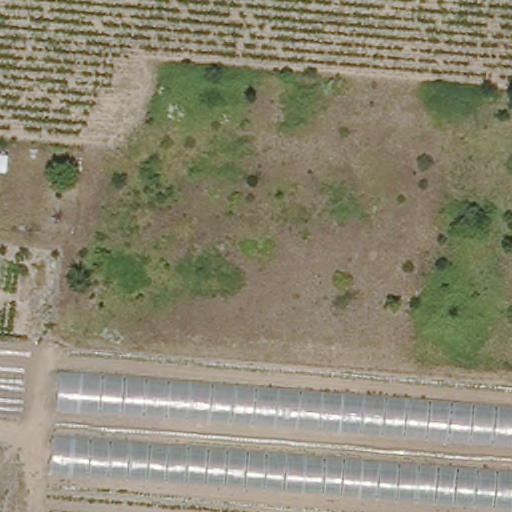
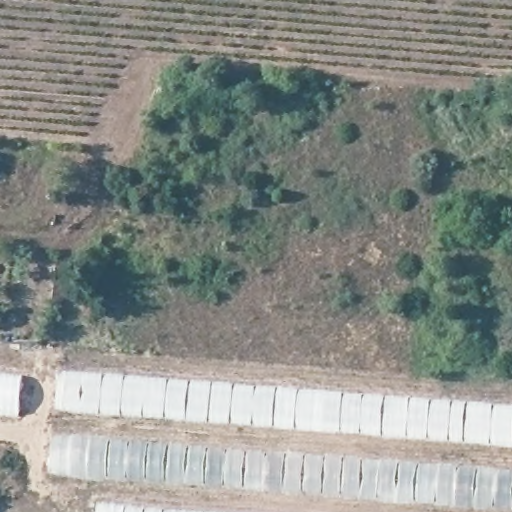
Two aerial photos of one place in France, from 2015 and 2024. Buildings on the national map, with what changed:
unchanged [(60,370),(512,404),(512,447),(57,414),(60,370)]
new [(19,417),(0,415),(0,376),(22,378),(19,417)]
unchanged [(512,473),(512,510),(48,473),(52,435),(512,473)]
new [(100,505),(189,512),(99,512),(100,505)]

